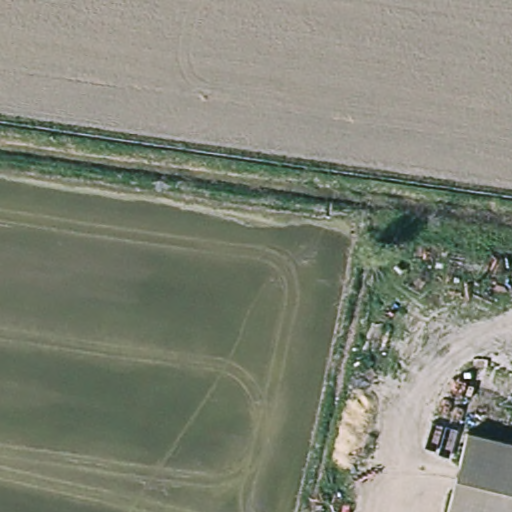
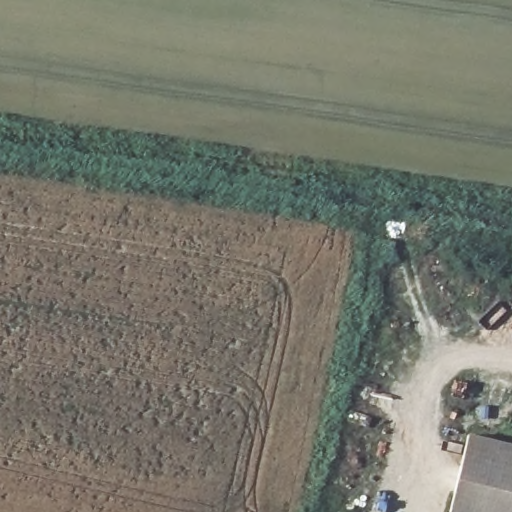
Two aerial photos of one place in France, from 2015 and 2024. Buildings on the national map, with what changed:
unchanged [(512,447),(512,512),(448,512),(466,436),(512,447)]

